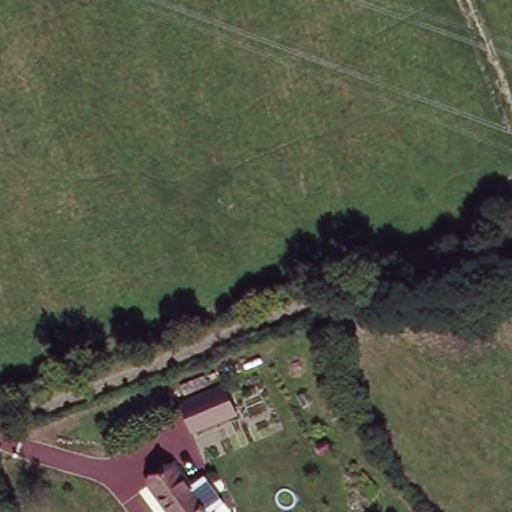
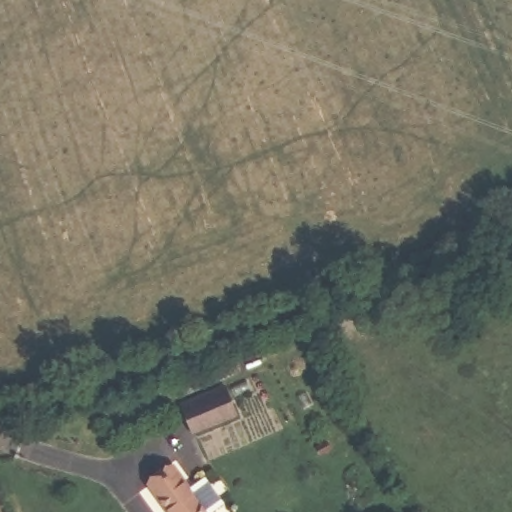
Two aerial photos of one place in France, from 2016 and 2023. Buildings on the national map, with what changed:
unchanged [(197,431),(190,411),(186,399),(227,384),(231,396),(238,416),(197,431)]
unchanged [(209,512),(174,512),(155,483),(179,466),(209,512)]

